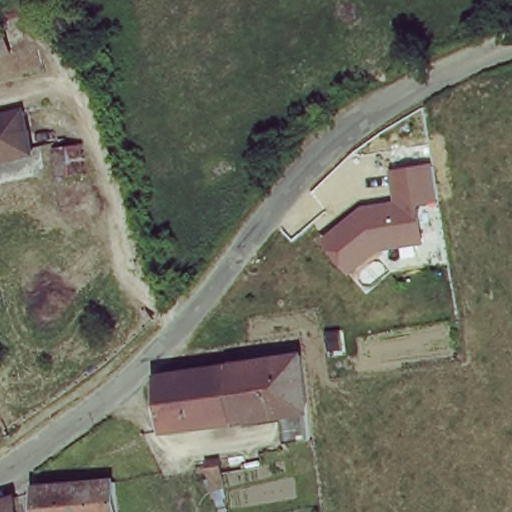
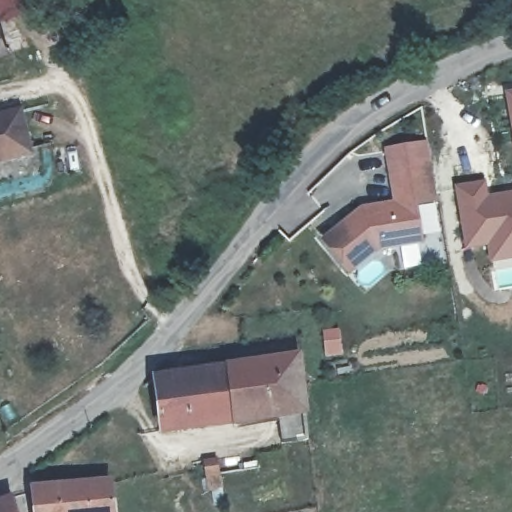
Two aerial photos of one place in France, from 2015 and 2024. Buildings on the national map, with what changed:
unchanged [(0,18),(3,17),(11,56),(0,59),(0,18)]
new [(505,92),(512,90),(512,134),(505,92)]
unchanged [(28,150),(0,157),(0,111),(15,107),(28,150)]
unchanged [(361,208),(392,202),(387,172),(433,165),(440,203),(420,206),(427,243),(381,248),(351,272),(321,241),(361,208)]
new [(490,263),(486,245),(465,248),(454,187),(484,180),(488,195),(512,190),(512,259),(490,263)]
unchanged [(276,416),(234,422),(164,431),(156,376),(226,366),(299,355),(306,409),(309,441),(281,445),(276,416)]
unchanged [(210,480),(206,464),(220,460),(223,477),(210,480)]
unchanged [(108,476),(111,512),(30,512),(28,484),(108,476)]
unchanged [(18,512),(0,512),(0,497),(13,492),(18,512)]

